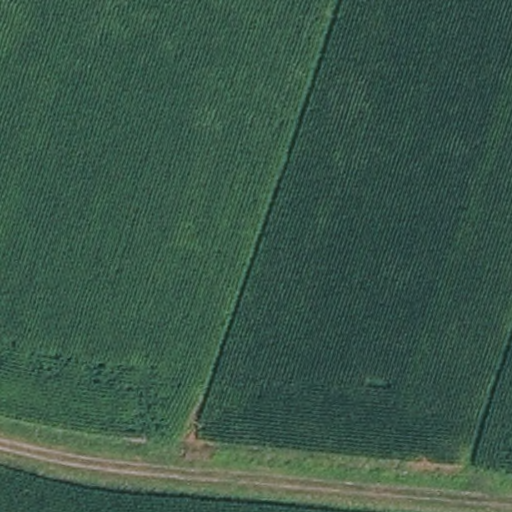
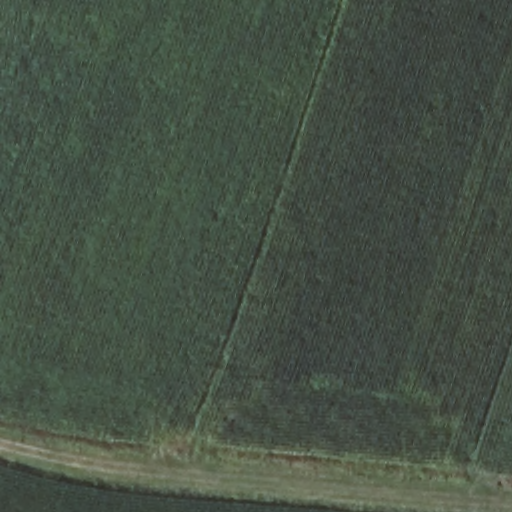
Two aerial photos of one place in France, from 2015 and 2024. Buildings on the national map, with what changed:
[]

